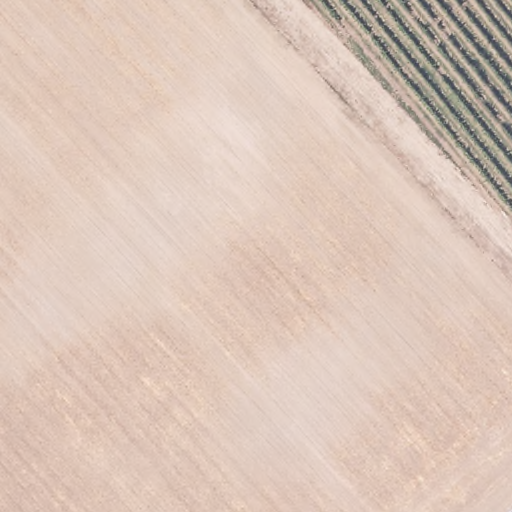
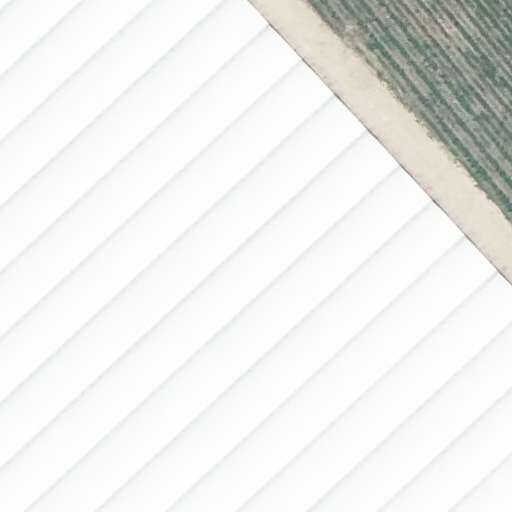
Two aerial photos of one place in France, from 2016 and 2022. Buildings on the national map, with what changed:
new [(0,512),(0,0),(247,0),(512,287),(512,512),(0,512)]

